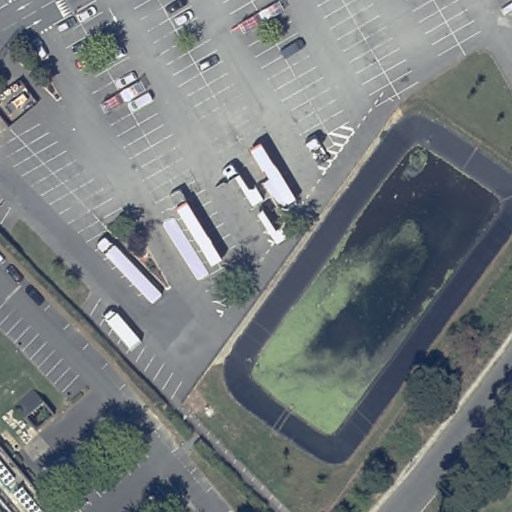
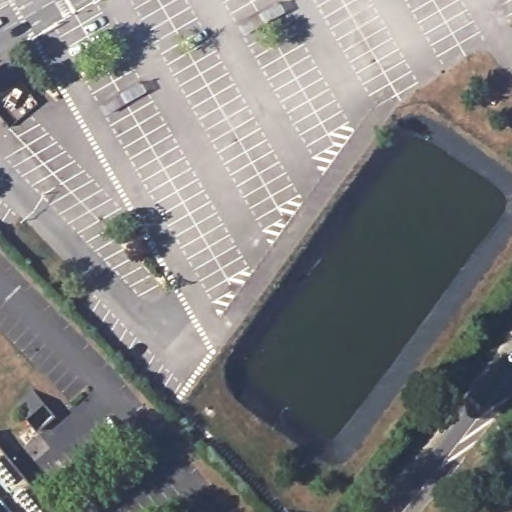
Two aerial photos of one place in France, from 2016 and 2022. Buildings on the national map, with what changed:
unchanged [(36,430),(26,417),(44,402),(54,415),(36,430)]

